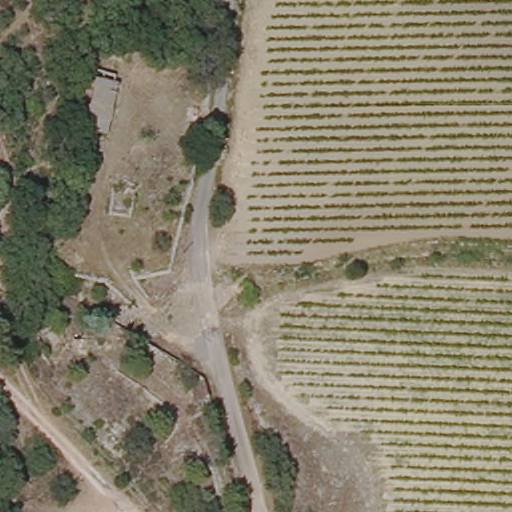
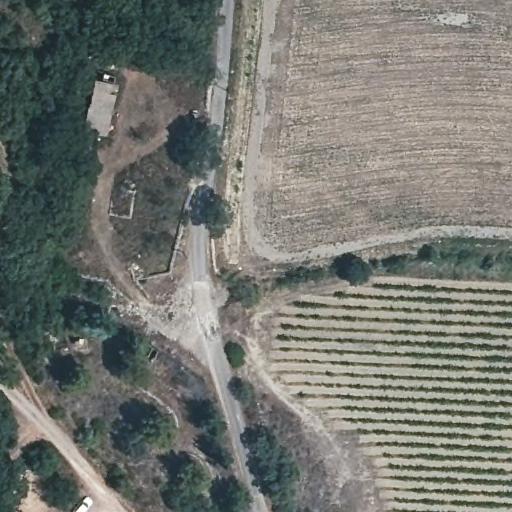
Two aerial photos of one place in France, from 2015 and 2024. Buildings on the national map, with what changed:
unchanged [(108,139),(87,134),(99,84),(119,89),(108,139)]

